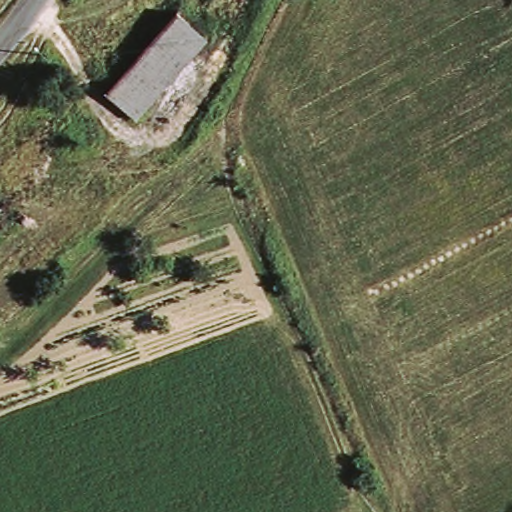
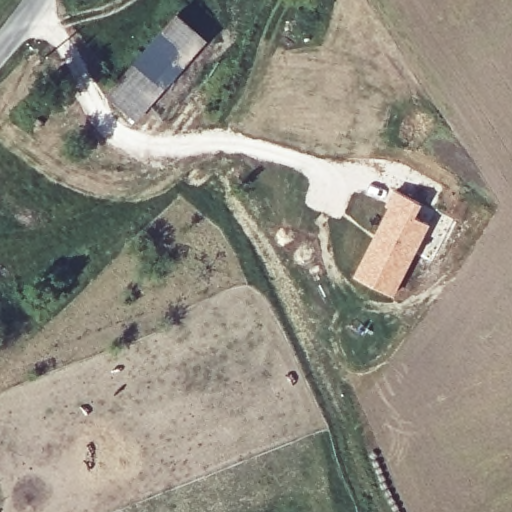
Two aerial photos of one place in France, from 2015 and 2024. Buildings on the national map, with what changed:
unchanged [(175,20),(202,49),(136,114),(108,87),(175,20)]
new [(382,219),(395,190),(423,203),(416,216),(430,224),(394,297),(353,276),(382,219)]

